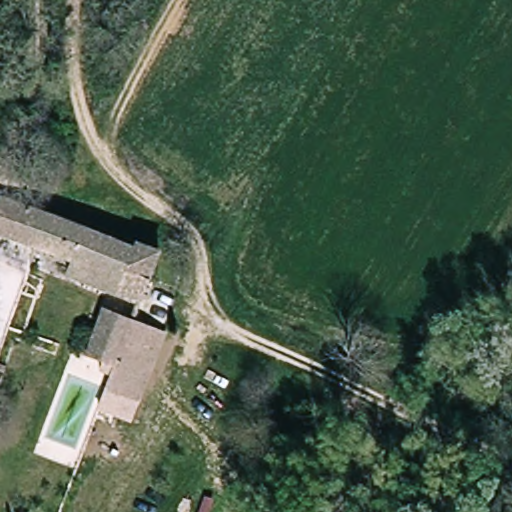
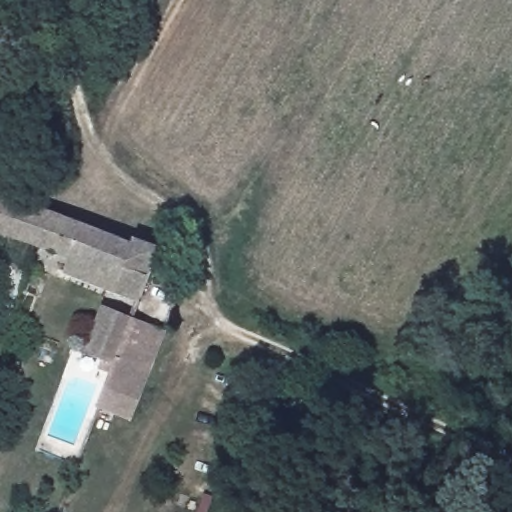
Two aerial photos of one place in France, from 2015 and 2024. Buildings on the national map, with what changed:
unchanged [(87,255),(39,240),(0,228),(0,213),(6,195),(164,246),(150,291),(111,277),(81,267),(87,255)]
unchanged [(39,240),(32,268),(0,255),(0,228),(39,240)]
unchanged [(104,308),(167,332),(152,372),(141,402),(110,390),(118,369),(89,360),(104,308)]

